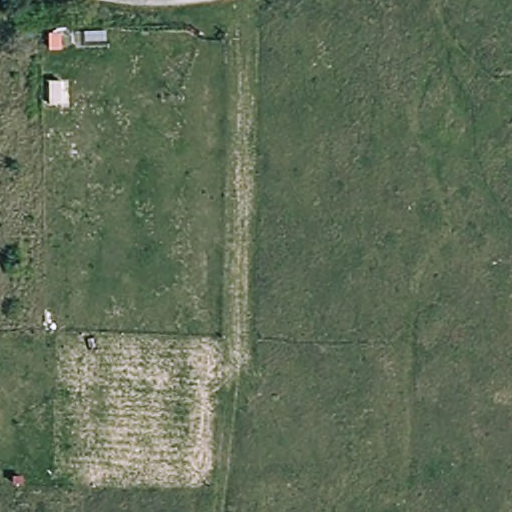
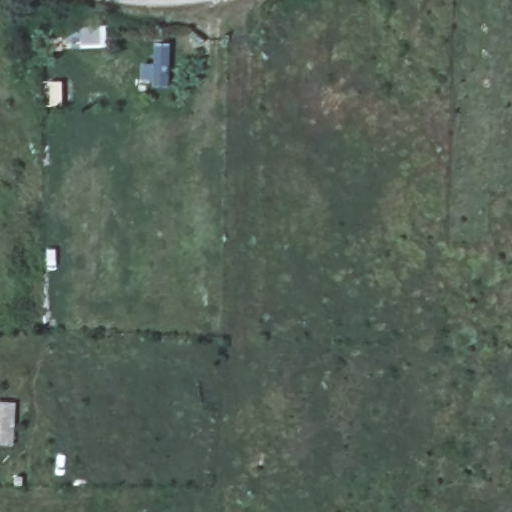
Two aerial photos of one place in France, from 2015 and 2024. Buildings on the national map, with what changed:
new [(13,447),(0,445),(0,400),(19,403),(13,447)]

